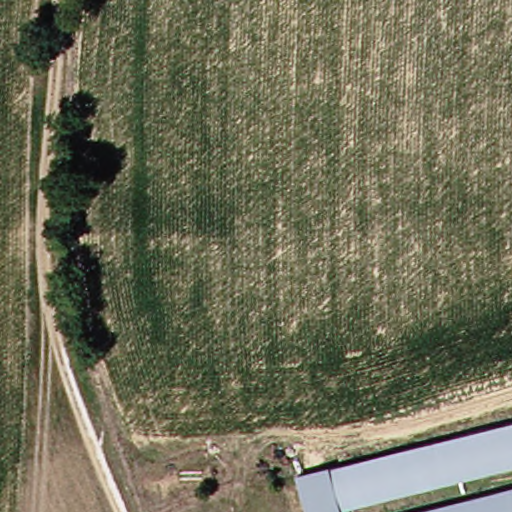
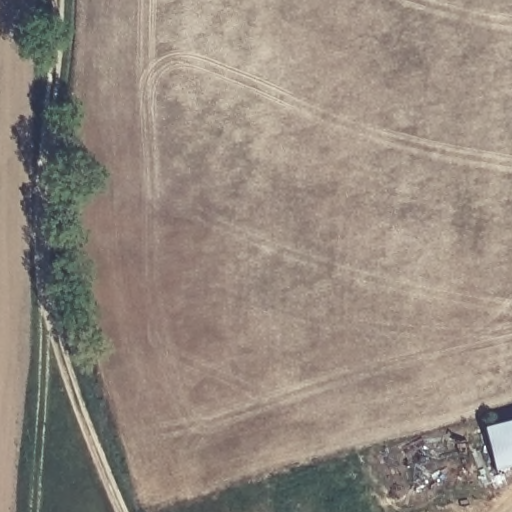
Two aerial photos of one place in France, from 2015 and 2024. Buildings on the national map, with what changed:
demolished [(512,416),(512,461),(332,509),(333,512),(299,512),(287,471),(512,416)]
new [(491,428),(512,423),(512,465),(500,468),(491,428)]
demolished [(512,512),(396,512),(512,481),(512,512)]

